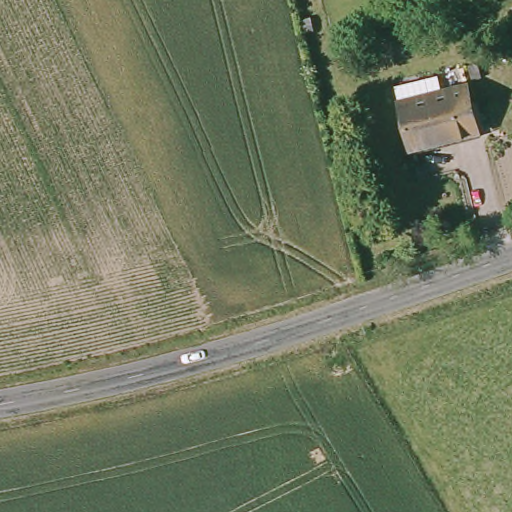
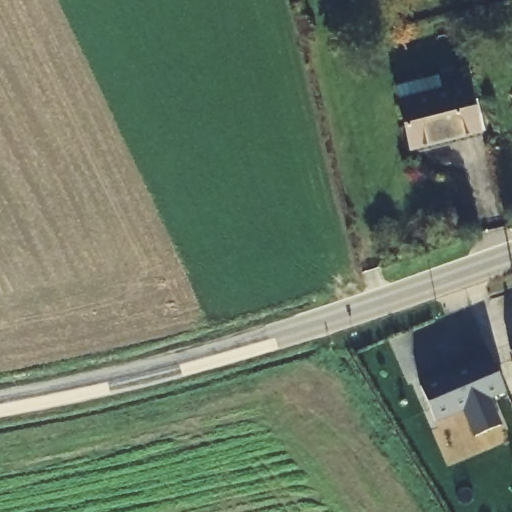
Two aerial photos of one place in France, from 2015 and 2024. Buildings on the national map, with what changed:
unchanged [(469,86),(480,132),(410,149),(399,102),(469,86)]
new [(512,349),(512,353),(510,350),(512,349)]
new [(421,386),(472,363),(470,359),(490,351),(507,391),(490,398),(501,426),(476,436),(464,408),(435,421),(421,386)]

